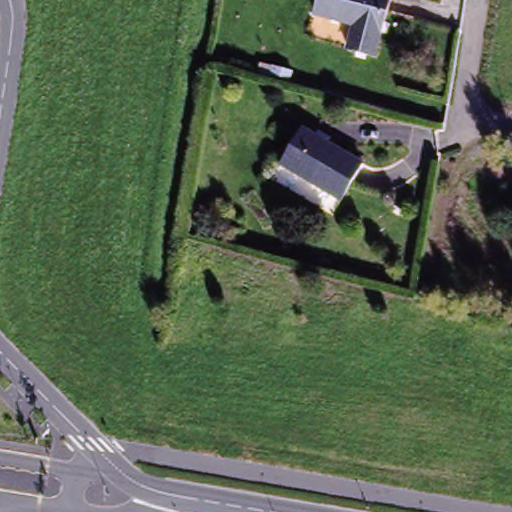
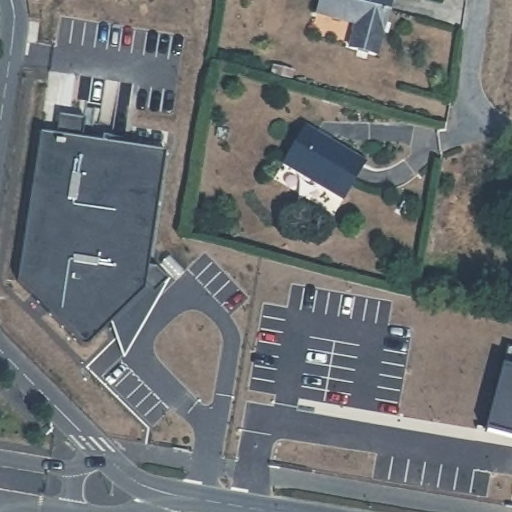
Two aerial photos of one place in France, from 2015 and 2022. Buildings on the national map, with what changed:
unchanged [(348,47),(355,24),(316,14),(320,0),(391,0),(375,55),(348,47)]
unchanged [(289,83),(216,61),(219,50),(292,73),(289,83)]
new [(109,322),(86,346),(82,347),(79,346),(15,282),(39,136),(54,138),(58,116),(81,121),(78,141),(162,153),(145,267),(155,269),(165,283),(151,296),(141,291),(109,322)]
unchanged [(343,203),(283,170),(301,132),(363,168),(343,203)]

